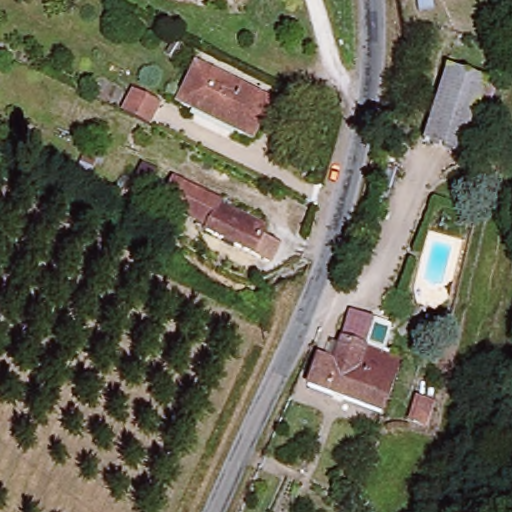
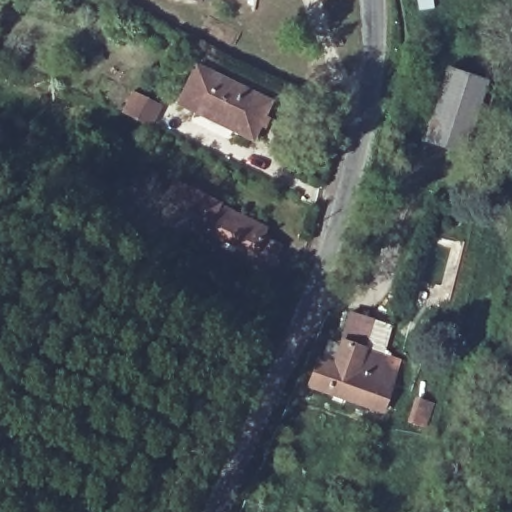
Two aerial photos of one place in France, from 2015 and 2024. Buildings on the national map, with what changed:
unchanged [(196,2),(188,0),(196,0),(196,2)]
unchanged [(273,104),(255,142),(180,105),(200,67),(273,104)]
unchanged [(472,152),(430,142),(446,74),(487,83),(472,152)]
unchanged [(113,110),(122,89),(150,102),(141,124),(113,110)]
unchanged [(266,226),(263,236),(281,244),(275,261),(200,226),(201,223),(156,201),(167,177),(266,226)]
unchanged [(139,204),(125,197),(131,182),(145,189),(139,204)]
unchanged [(367,352),(400,363),(383,413),(310,391),(320,361),(337,367),(356,316),(376,324),(367,352)]
unchanged [(430,402),(422,422),(412,419),(420,397),(430,402)]

